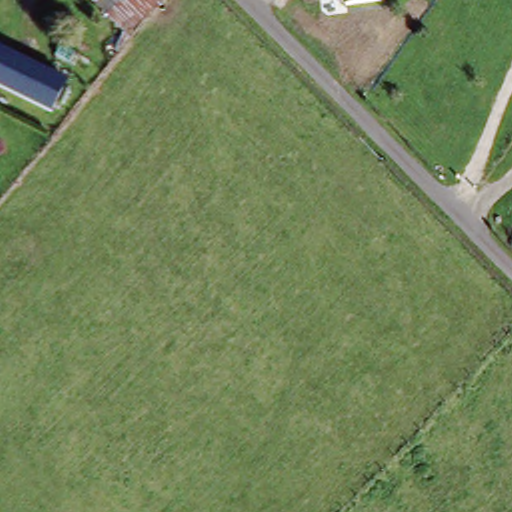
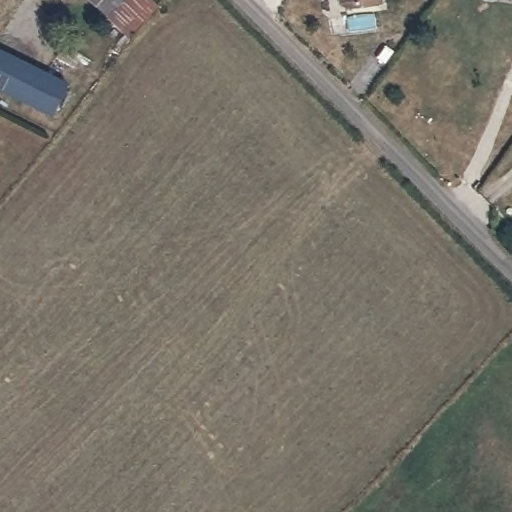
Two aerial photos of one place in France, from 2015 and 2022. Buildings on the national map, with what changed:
unchanged [(125,0),(105,20),(84,0),(125,0)]
unchanged [(105,20),(125,0),(151,0),(159,9),(130,43),(105,20)]
unchanged [(348,11),(340,4),(340,0),(385,0),(385,5),(348,11)]
unchanged [(0,100),(0,51),(74,84),(53,124),(0,100)]

